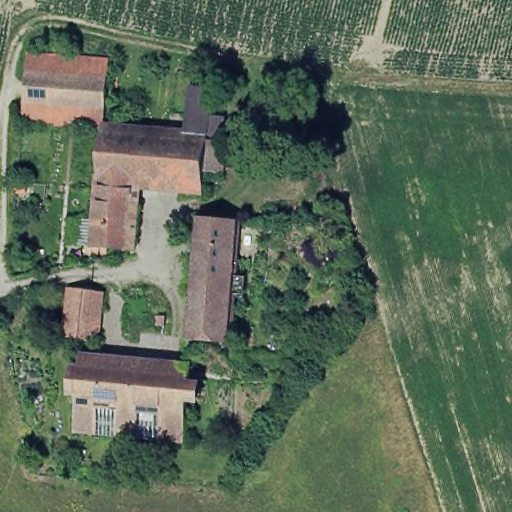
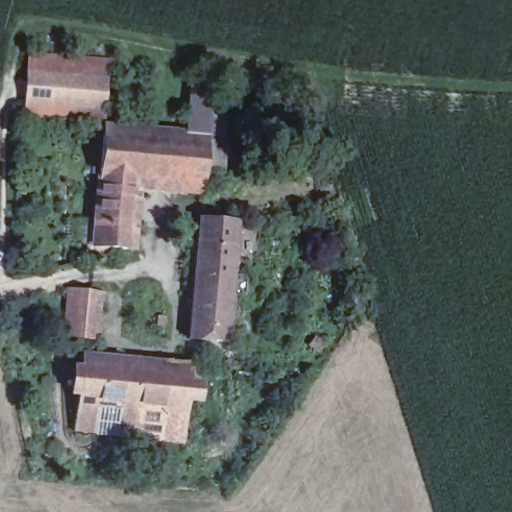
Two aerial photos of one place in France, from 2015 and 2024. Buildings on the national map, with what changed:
unchanged [(28,113),(33,45),(113,51),(108,119),(28,113)]
unchanged [(100,237),(103,190),(105,167),(108,122),(190,129),(193,103),(195,78),(216,80),(215,105),(212,131),(208,177),(138,170),(136,193),(133,239),(113,238),(112,249),(98,248),(100,237)]
unchanged [(243,253),(242,269),(240,269),(238,288),(196,284),(201,224),(201,214),(235,216),(244,217),(242,238),(241,253),(243,253)]
unchanged [(196,284),(238,288),(235,338),(192,334),(196,284)]
unchanged [(68,291),(69,286),(90,288),(102,289),(97,336),(63,332),(68,291)]
unchanged [(162,320),(162,329),(155,329),(155,320),(162,320)]
unchanged [(138,406),(87,400),(91,361),(144,366),(138,406)]
unchanged [(197,372),(194,411),(138,406),(144,366),(197,372)]
unchanged [(85,425),(87,400),(138,406),(136,430),(85,425)]
unchanged [(138,406),(194,411),(192,436),(136,430),(138,406)]

